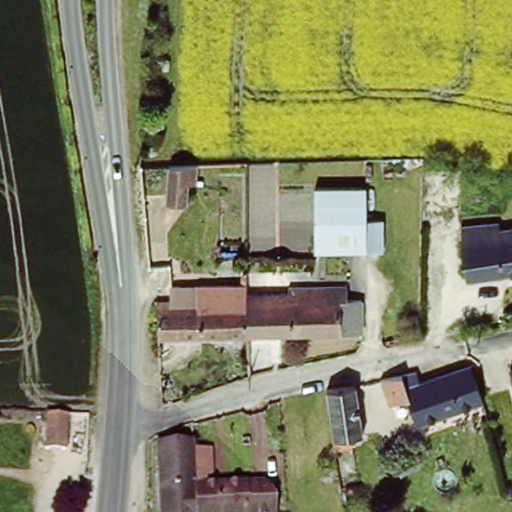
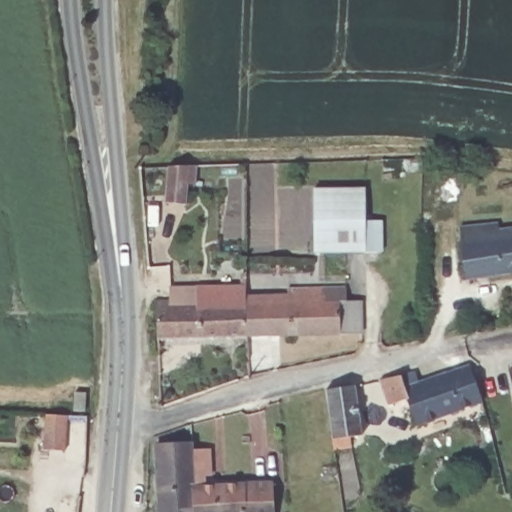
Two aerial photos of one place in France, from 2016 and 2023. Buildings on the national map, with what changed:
unchanged [(190,197),(168,197),(168,162),(174,161),(190,162),(190,197)]
unchanged [(366,190),(367,219),(381,218),(382,249),(317,250),(317,192),(366,190)]
unchanged [(460,230),(512,226),(512,270),(465,275),(460,230)]
unchanged [(245,281),(245,296),(245,335),(154,335),(151,303),(150,294),(173,294),(175,280),(245,281)]
unchanged [(305,298),(305,283),(329,284),(328,299),(355,301),(355,335),(245,335),(245,296),(305,298)]
unchanged [(488,406),(420,423),(415,403),(402,406),(396,382),(430,375),(431,380),(478,369),(488,406)]
unchanged [(512,419),(511,419),(500,373),(512,370),(512,419)]
unchanged [(351,380),(358,434),(346,436),(347,443),(334,444),(327,385),(351,380)]
unchanged [(68,453),(46,451),(48,413),(70,413),(68,453)]
unchanged [(159,449),(181,448),(180,439),(192,438),(193,453),(205,452),(206,473),(195,473),(195,487),(197,512),(162,512),(159,449)]
unchanged [(227,485),(226,474),(245,473),(245,485),(271,483),(272,512),(197,512),(195,487),(227,485)]

